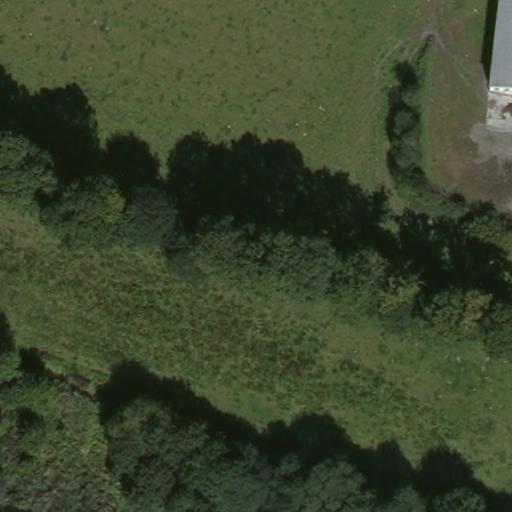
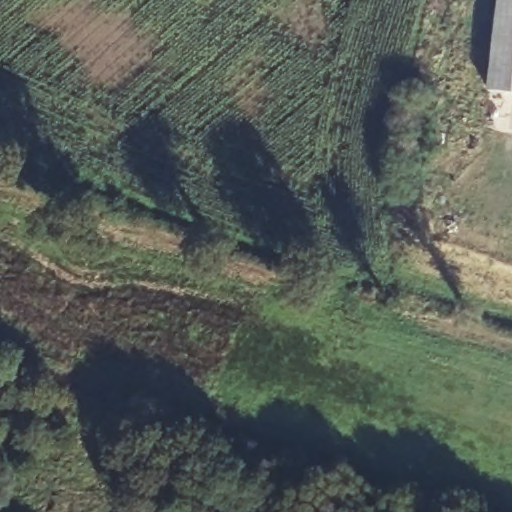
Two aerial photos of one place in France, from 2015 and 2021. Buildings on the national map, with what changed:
unchanged [(512,92),(489,89),(493,41),(498,0),(512,0),(512,92)]

